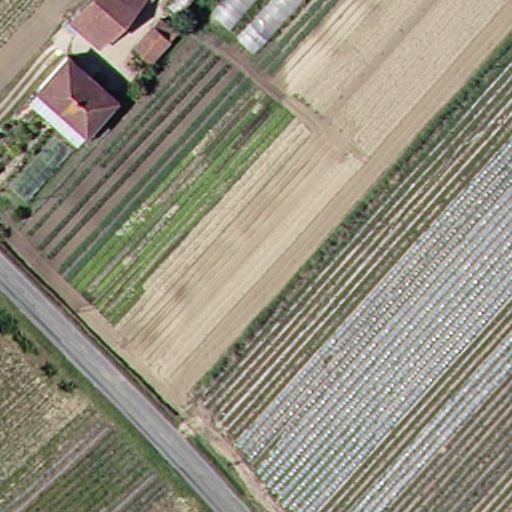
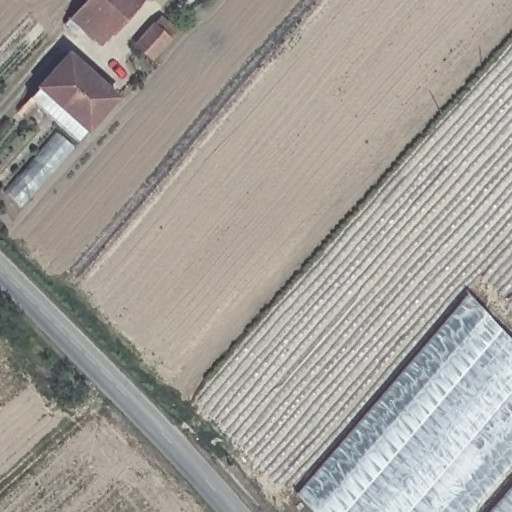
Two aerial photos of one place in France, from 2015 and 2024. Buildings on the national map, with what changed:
unchanged [(82,14),(95,0),(147,0),(122,28),(110,40),(96,27),(82,14)]
demolished [(213,18),(229,0),(263,0),(231,35),(213,18)]
demolished [(276,0),(311,0),(257,60),(240,39),(276,0)]
unchanged [(179,29),(159,53),(142,40),(164,16),(179,29)]
unchanged [(34,99),(76,56),(120,99),(82,142),(34,99)]
new [(312,512),(295,494),(466,293),(512,344),(512,462),(469,512),(312,512)]
new [(512,512),(488,512),(512,484),(512,512)]

